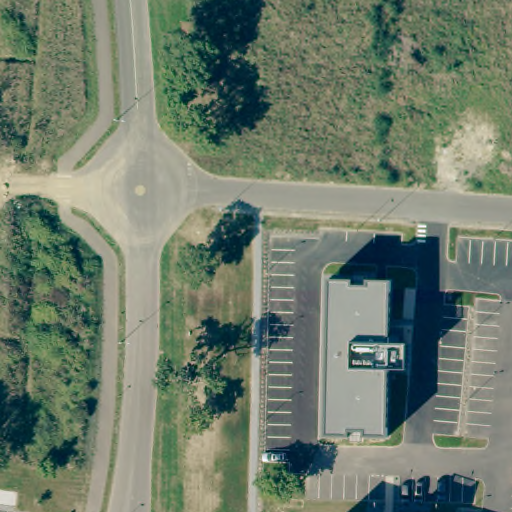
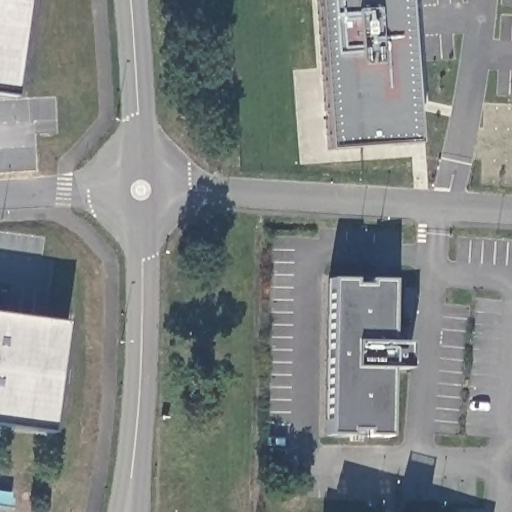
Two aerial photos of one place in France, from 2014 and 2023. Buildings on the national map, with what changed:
new [(0,95),(0,0),(25,0),(11,96),(0,95)]
new [(318,0),(408,0),(419,144),(328,149),(318,0)]
unchanged [(364,436),(364,431),(348,430),(348,435),(326,435),(329,278),(351,280),(352,286),(368,286),(369,281),(389,282),(389,342),(406,343),(406,368),(387,367),(387,436),(364,436)]
new [(50,435),(0,428),(0,315),(65,323),(50,435)]

